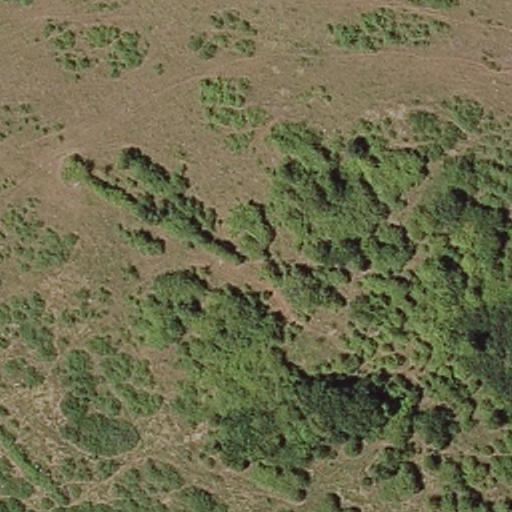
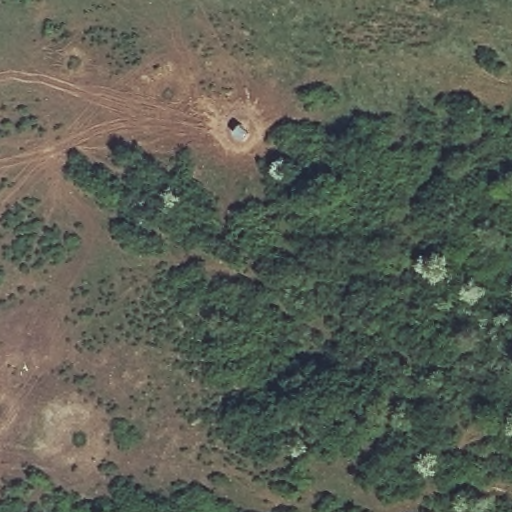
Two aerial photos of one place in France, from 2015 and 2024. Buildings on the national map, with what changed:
[]

